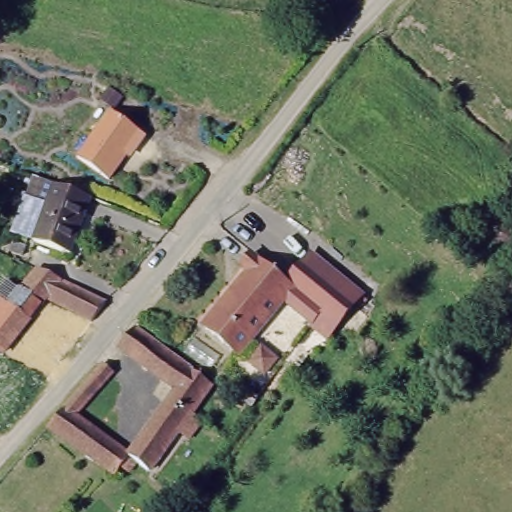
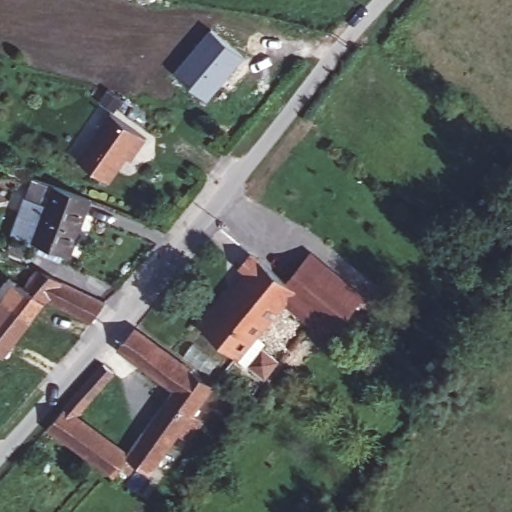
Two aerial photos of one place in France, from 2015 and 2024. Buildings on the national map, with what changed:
new [(174,71),(210,29),(243,57),(209,101),(174,71)]
unchanged [(125,110),(112,100),(120,90),(133,100),(125,110)]
unchanged [(152,138),(140,153),(136,150),(112,180),(84,158),(120,113),(152,138)]
unchanged [(65,250),(40,241),(33,239),(49,197),(27,189),(35,168),(57,178),(87,191),(77,218),(65,250)]
unchanged [(237,356),(202,327),(245,272),(235,263),(247,249),(292,285),(237,356)]
unchanged [(292,285),(287,281),(310,253),(363,295),(342,326),(324,312),(312,327),(280,300),(292,285)]
unchanged [(9,302),(0,294),(0,290),(10,278),(20,287),(37,266),(73,282),(78,272),(109,287),(103,296),(91,316),(47,291),(0,355),(0,313),(9,302)]
unchanged [(175,386),(112,339),(127,321),(207,381),(190,406),(202,414),(190,431),(180,423),(151,463),(130,448),(175,386)]
unchanged [(262,346),(279,360),(266,377),(248,365),(262,346)]
unchanged [(117,467),(45,419),(97,357),(108,364),(70,410),(130,448),(117,467)]

